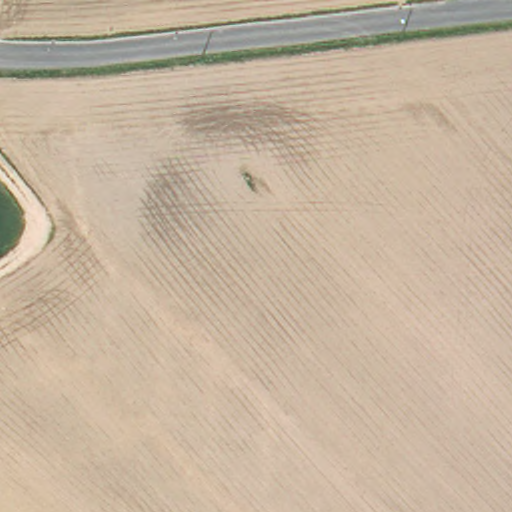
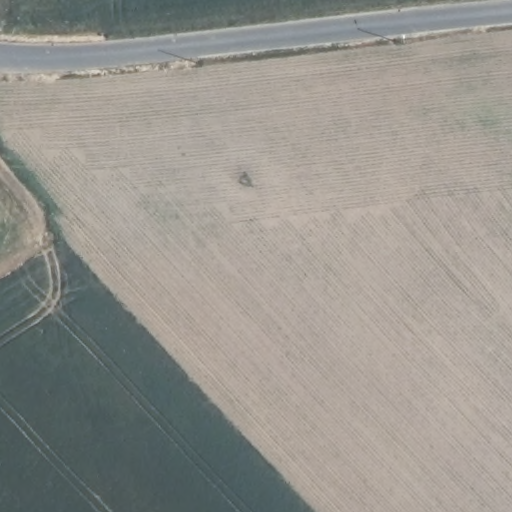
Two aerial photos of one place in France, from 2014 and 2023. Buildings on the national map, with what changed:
[]

